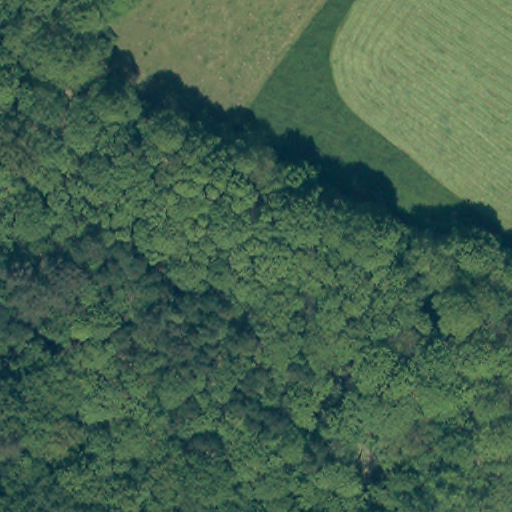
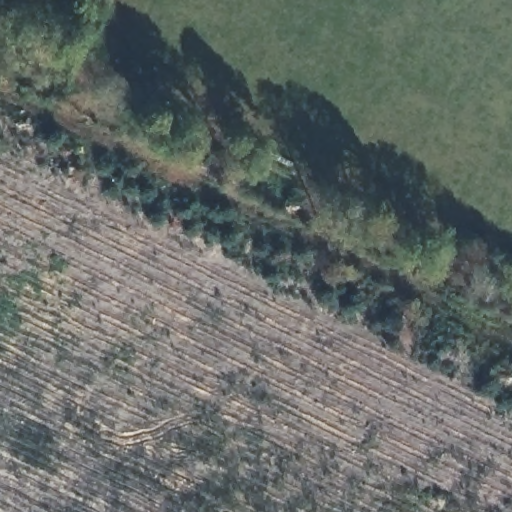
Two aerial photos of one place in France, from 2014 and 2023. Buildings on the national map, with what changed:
[]

